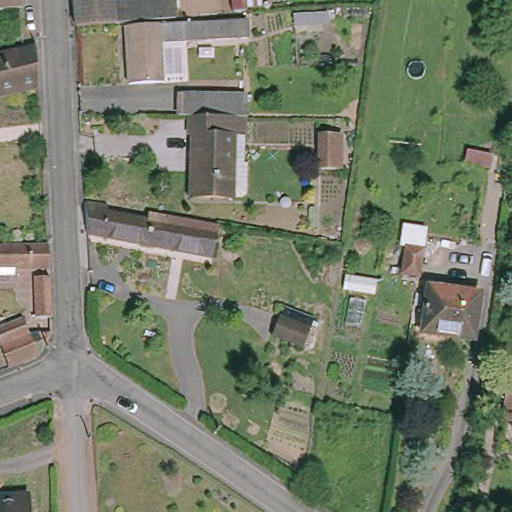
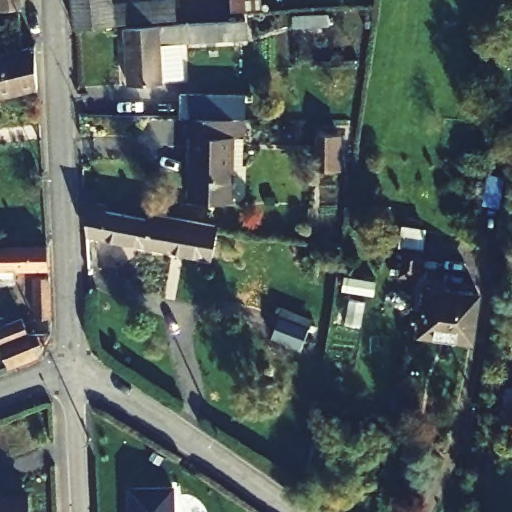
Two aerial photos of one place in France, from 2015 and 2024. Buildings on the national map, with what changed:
unchanged [(111,6),(114,28),(97,29),(72,30),(69,0),(111,0),(111,6)]
unchanged [(114,28),(111,6),(178,2),(179,25),(114,28)]
unchanged [(252,29),(251,46),(189,49),(188,85),(163,85),(163,91),(133,91),(132,69),(125,69),(126,36),(252,29)]
unchanged [(0,89),(0,48),(31,43),(33,51),(36,82),(0,89)]
unchanged [(176,89),(245,93),(243,118),(185,117),(175,117),(176,89)]
unchanged [(236,202),(191,198),(196,138),(183,137),(185,117),(243,118),(236,202)]
unchanged [(338,139),(335,171),(315,170),(318,138),(338,139)]
unchanged [(90,205),(110,209),(109,217),(156,225),(157,218),(225,231),(219,260),(92,239),(90,205)]
unchanged [(49,251),(50,273),(16,274),(17,288),(0,288),(0,251),(49,251)]
unchanged [(50,324),(35,324),(35,283),(50,282),(50,324)]
unchanged [(479,302),(472,347),(420,337),(428,292),(479,302)]
unchanged [(20,320),(27,335),(51,334),(51,336),(38,357),(9,368),(0,346),(0,327),(20,320)]
unchanged [(300,340),(297,358),(270,351),(273,334),(300,340)]
new [(171,492),(172,512),(129,512),(128,494),(171,492)]
unchanged [(27,497),(29,512),(0,512),(0,500),(27,497)]

